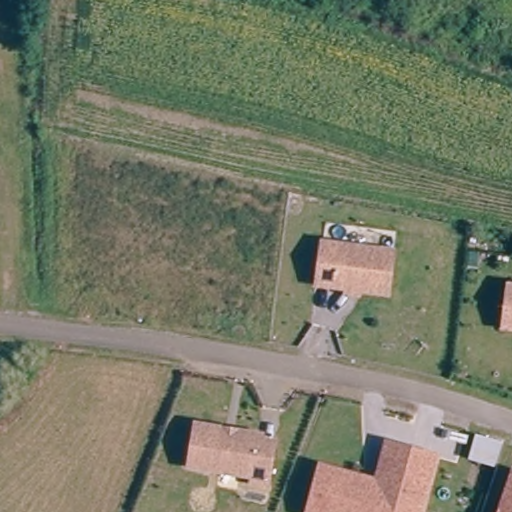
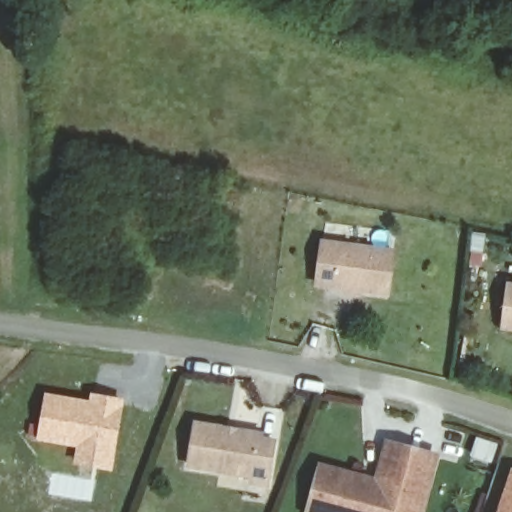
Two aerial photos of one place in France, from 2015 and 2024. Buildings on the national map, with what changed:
unchanged [(347,295),(348,289),(320,286),(325,245),(395,254),(390,294),(362,291),(361,297),(347,295)]
unchanged [(506,333),(511,290),(512,290),(512,334),(506,333)]
new [(45,391),(88,399),(90,392),(125,398),(112,471),(71,466),(75,447),(35,440),(45,391)]
unchanged [(254,482),(255,475),(191,465),(198,423),(226,428),(239,430),(262,434),(262,439),(275,441),(268,484),(254,482)]
unchanged [(369,481),(380,484),(391,445),(439,459),(424,512),(312,512),(325,468),(369,481)]
unchanged [(499,512),(512,473),(512,512),(499,512)]

